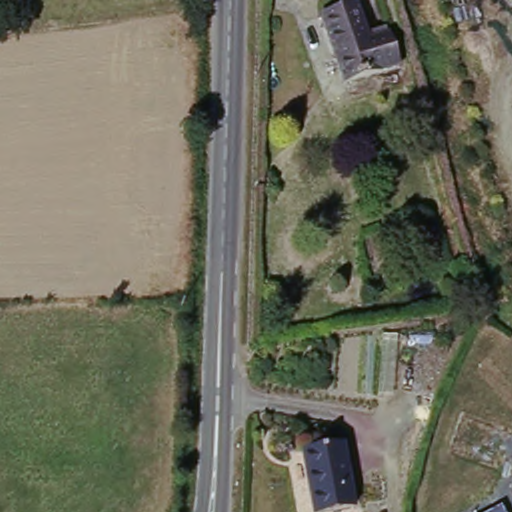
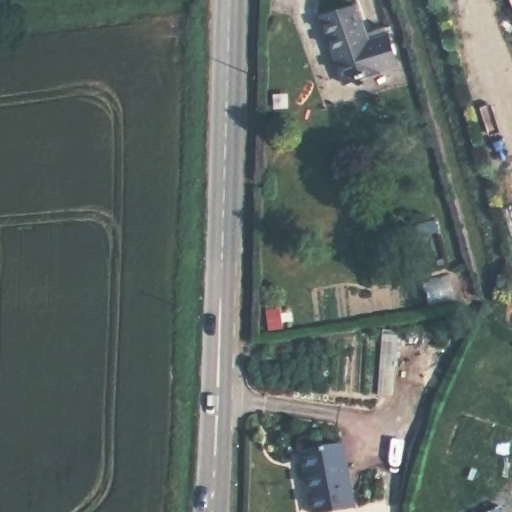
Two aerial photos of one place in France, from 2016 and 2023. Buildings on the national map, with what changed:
unchanged [(366,4),(373,40),(391,36),(399,71),(344,84),(326,10),(366,4)]
unchanged [(352,446),(354,510),(314,511),(310,447),(352,446)]

